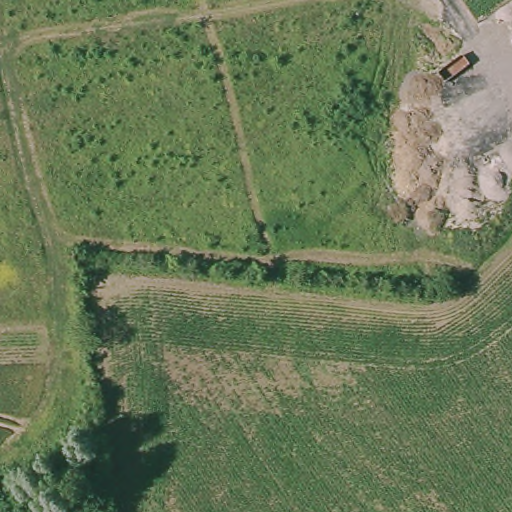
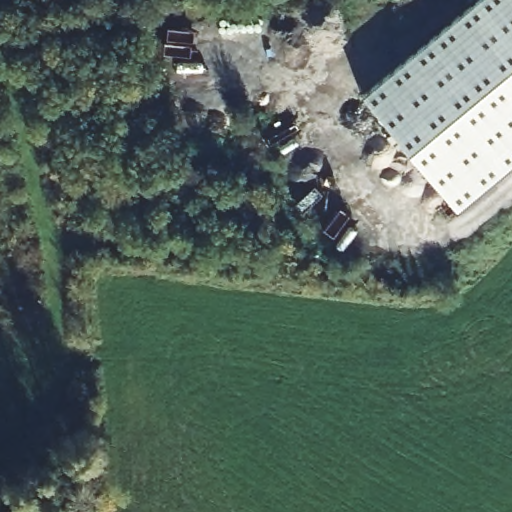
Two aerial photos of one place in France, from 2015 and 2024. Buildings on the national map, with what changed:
new [(362,97),(478,0),(512,0),(512,166),(458,211),(362,97)]

